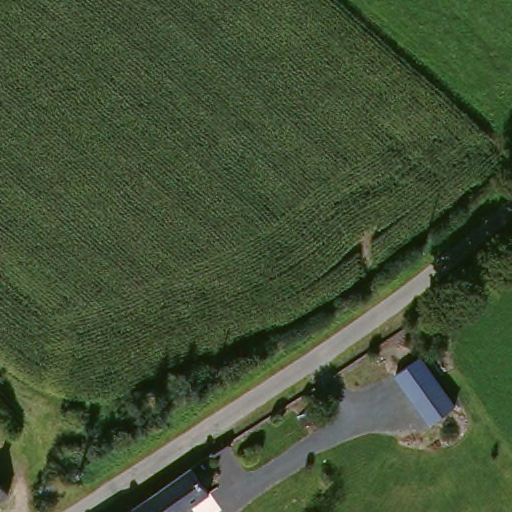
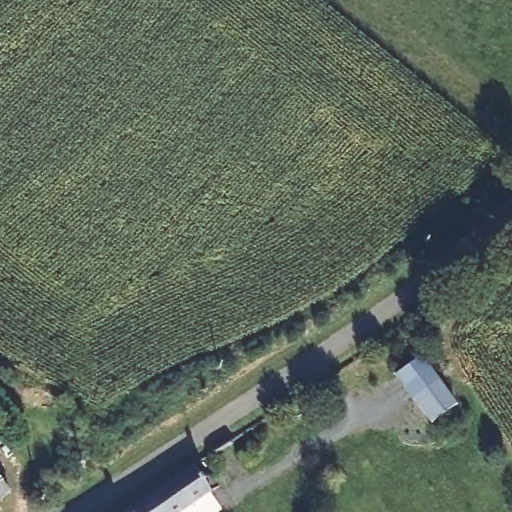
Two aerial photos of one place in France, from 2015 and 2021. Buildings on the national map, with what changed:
unchanged [(419,359),(456,407),(432,425),(396,377),(419,359)]
unchanged [(193,469),(210,493),(183,512),(126,512),(193,469)]
unchanged [(43,500),(34,487),(55,473),(64,486),(43,500)]
unchanged [(0,498),(0,478),(10,488),(0,498)]

